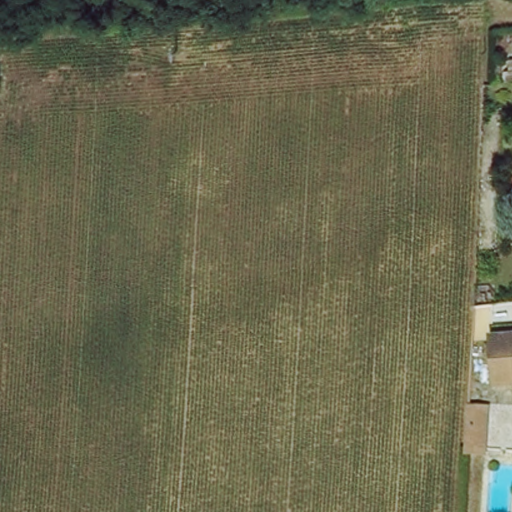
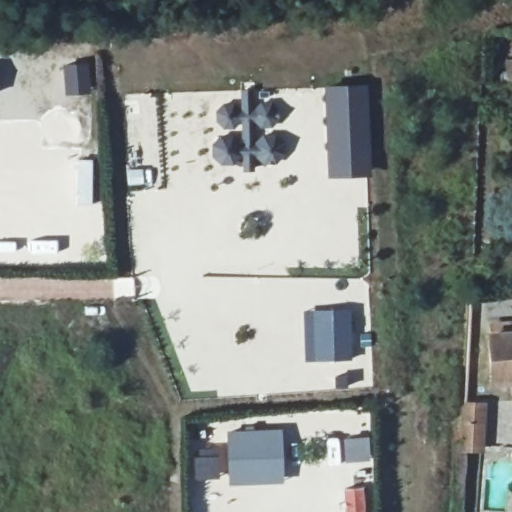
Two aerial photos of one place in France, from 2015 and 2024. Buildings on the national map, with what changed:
unchanged [(0,96),(0,81),(1,96),(0,96)]
new [(367,83),(370,174),(325,177),(322,85),(367,83)]
new [(211,143),(220,130),(220,128),(215,126),(216,111),(250,108),(268,96),(273,102),(271,105),(278,115),(280,116),(265,131),(263,133),(269,148),(270,160),(243,152),(242,164),(220,165),(211,157),(211,143)]
new [(350,311),(350,361),(303,362),(303,312),(350,311)]
unchanged [(494,385),(490,338),(494,337),(493,327),(512,326),(512,384),(494,385)]
new [(282,428),(283,484),(227,486),(225,430),(282,428)]
new [(368,435),(370,460),(343,462),(341,438),(368,435)]
new [(195,479),(193,457),(198,456),(197,449),(218,448),(220,478),(195,479)]
new [(364,487),(366,512),(345,512),(343,488),(364,487)]

